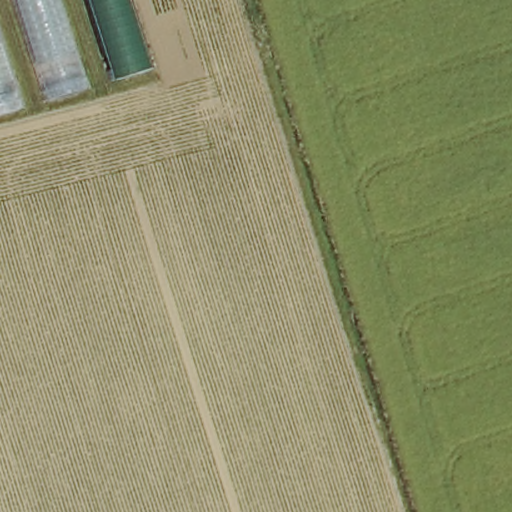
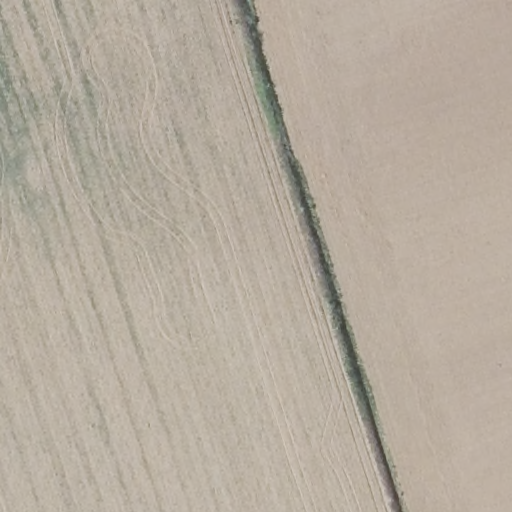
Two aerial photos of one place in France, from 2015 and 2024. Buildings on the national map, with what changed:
demolished [(38,104),(5,0),(51,0),(80,90),(38,104)]
demolished [(93,85),(69,0),(121,0),(141,68),(93,85)]
demolished [(0,113),(0,63),(14,109),(0,113)]

